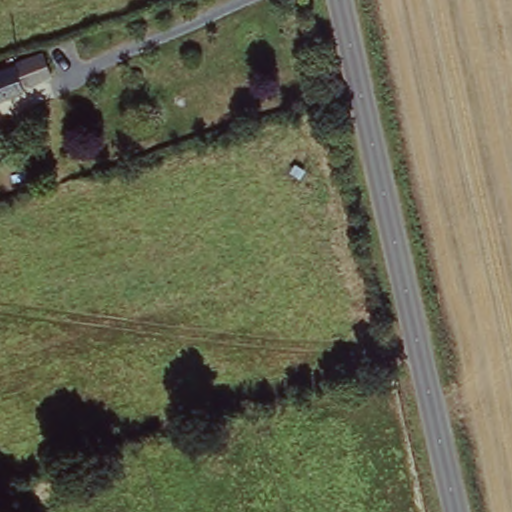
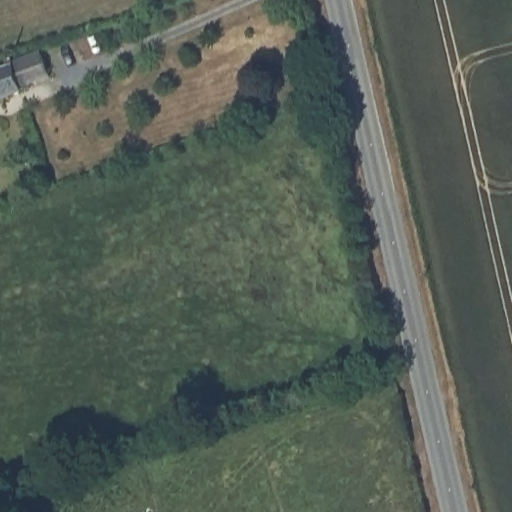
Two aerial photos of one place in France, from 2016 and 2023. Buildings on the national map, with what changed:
unchanged [(7,55),(10,65),(41,55),(52,79),(18,91),(19,95),(0,101),(0,57),(7,55)]

